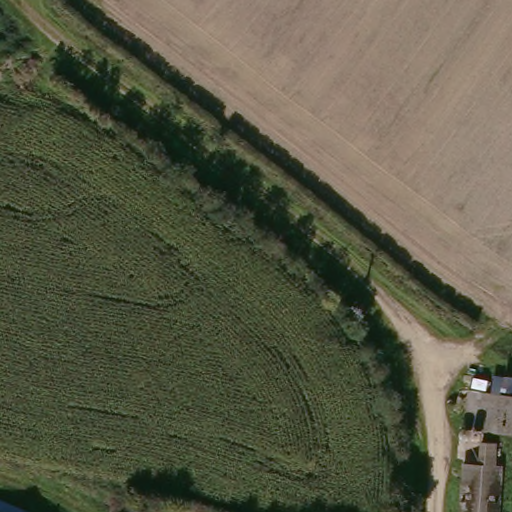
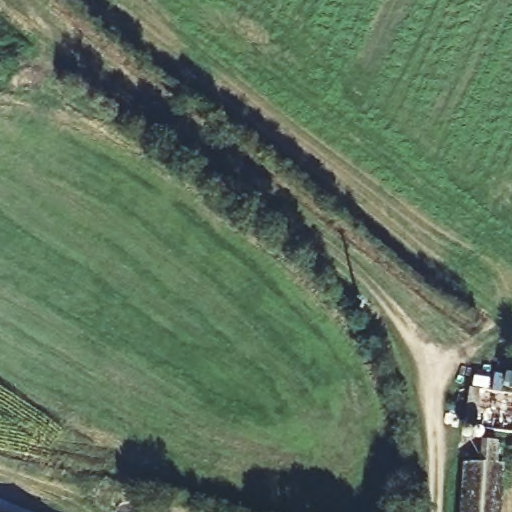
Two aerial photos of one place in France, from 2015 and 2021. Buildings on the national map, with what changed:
unchanged [(512,397),(512,433),(464,426),(469,391),(512,397)]
unchanged [(471,461),(473,436),(497,437),(495,465),(504,466),(501,512),(461,512),(464,461),(471,461)]
unchanged [(0,502),(24,512),(0,512),(0,502)]

